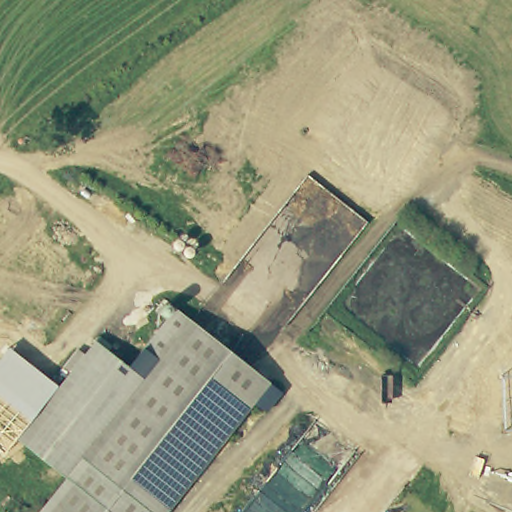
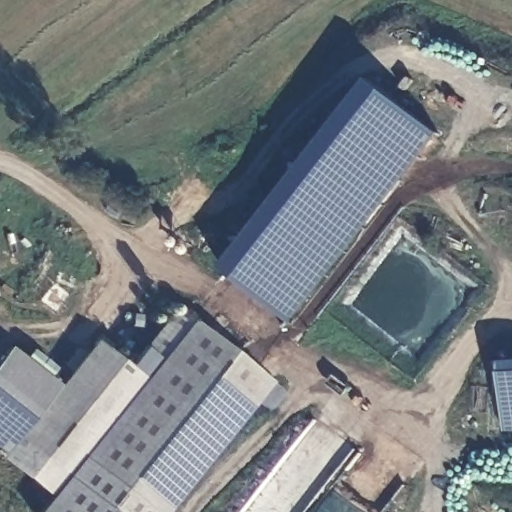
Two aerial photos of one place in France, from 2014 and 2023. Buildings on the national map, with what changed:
new [(293,325),(224,270),(375,81),(443,135),(293,325)]
unchanged [(178,310),(273,385),(284,394),(268,415),(256,405),(170,512),(44,512),(69,480),(20,440),(98,342),(131,368),(178,310)]
unchanged [(0,395),(0,358),(9,347),(61,388),(34,422),(0,395)]
new [(512,361),(512,430),(507,430),(501,361),(512,361)]
unchanged [(0,451),(0,395),(34,422),(20,440),(4,454),(0,451)]

